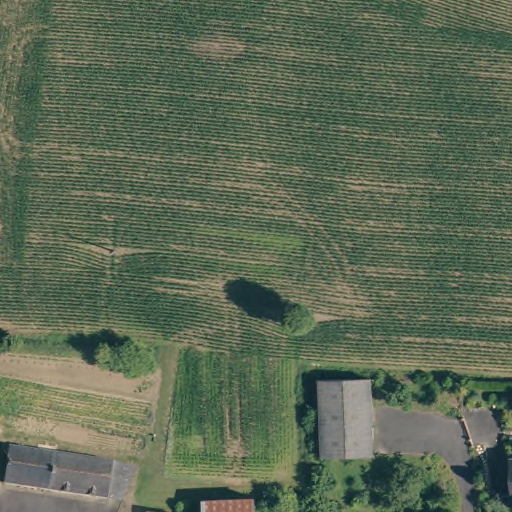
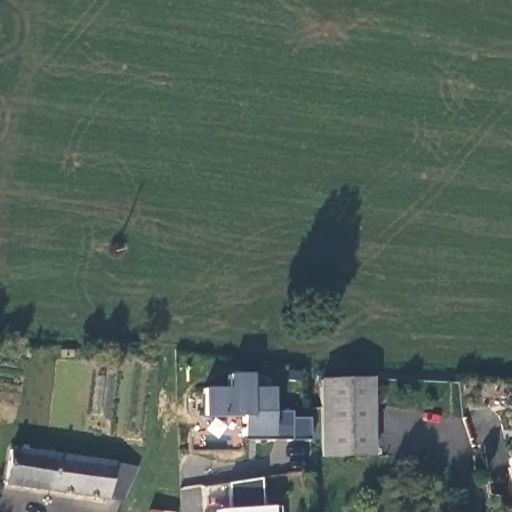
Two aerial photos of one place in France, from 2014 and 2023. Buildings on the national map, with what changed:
new [(244,439),(243,418),(204,418),(204,389),(229,390),(229,374),(259,375),(259,389),(274,390),(273,414),(290,414),(291,419),(309,420),(310,440),(244,439)]
unchanged [(374,457),(323,458),(320,382),(372,381),(374,457)]
unchanged [(97,499),(97,500),(0,487),(0,457),(1,451),(126,468),(111,501),(97,499)]
unchanged [(512,505),(511,495),(508,495),(507,454),(512,453),(512,504),(512,505)]
new [(215,511),(225,511),(228,485),(259,480),(258,510),(270,509),(279,508),(280,512),(216,512),(215,511)]

